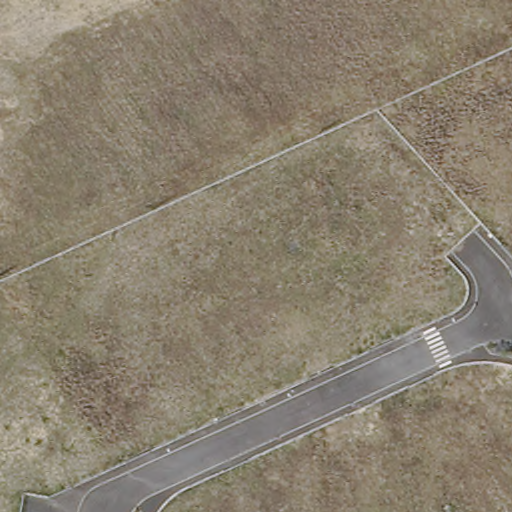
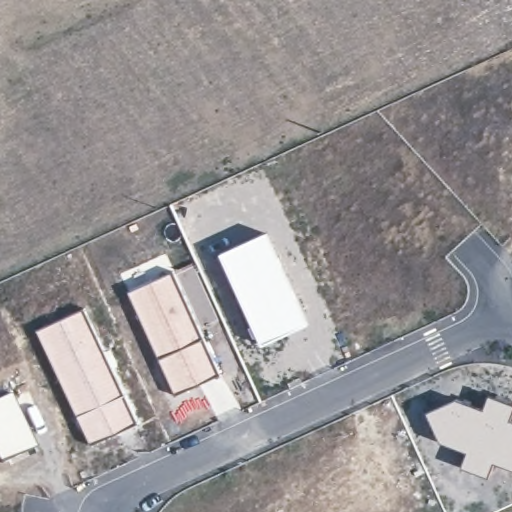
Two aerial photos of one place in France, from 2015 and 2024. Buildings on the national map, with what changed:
new [(265,234),(307,324),(261,346),(219,255),(265,234)]
new [(173,272),(220,376),(175,396),(127,292),(173,272)]
new [(82,311),(123,394),(77,416),(37,331),(82,311)]
new [(123,394),(137,422),(90,443),(77,416),(123,394)]
new [(483,410),(490,396),(512,404),(512,417),(511,420),(512,420),(512,471),(495,465),(488,478),(461,467),(467,452),(440,441),(426,413),(457,400),(483,410)]
new [(0,466),(0,403),(9,398),(33,451),(0,466)]

